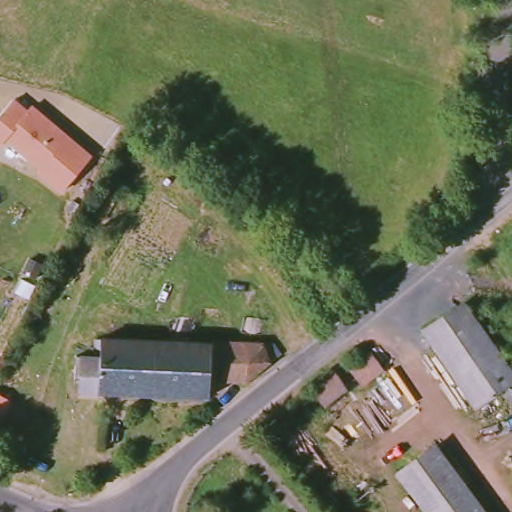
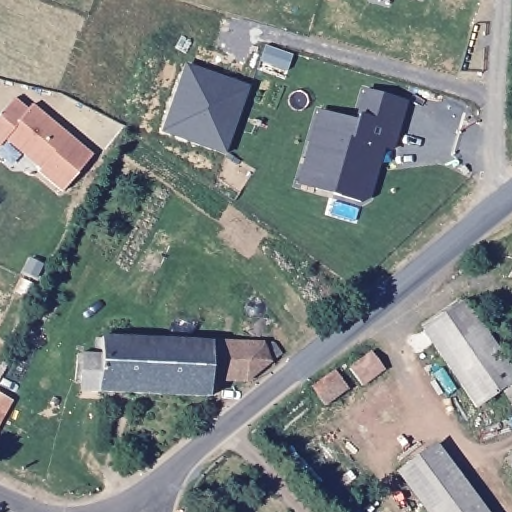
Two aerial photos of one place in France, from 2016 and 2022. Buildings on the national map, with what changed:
new [(230,155),(162,134),(186,64),(252,83),(230,155)]
new [(392,153),(383,150),(370,199),(361,205),(296,185),(316,111),(354,122),(363,90),(406,103),(392,153)]
unchanged [(62,191),(38,171),(41,169),(5,138),(0,145),(0,116),(13,100),(27,112),(31,106),(91,157),(62,191)]
unchanged [(500,390),(476,407),(423,330),(463,303),(512,372),(512,404),(510,405),(500,390)]
unchanged [(82,356),(100,357),(101,337),(211,343),(209,382),(208,397),(98,392),(80,391),(82,356)]
unchanged [(244,382),(209,382),(211,343),(264,344),(265,346),(271,342),(275,345),(281,354),(270,361),(244,382)]
unchanged [(350,368),(362,359),(370,353),(382,369),(375,375),(362,385),(350,368)]
unchanged [(335,370),(348,388),(325,405),(312,387),(335,370)]
unchanged [(4,413),(0,421),(0,411),(4,413)]
unchanged [(402,472),(440,445),(490,512),(432,512),(402,472)]

